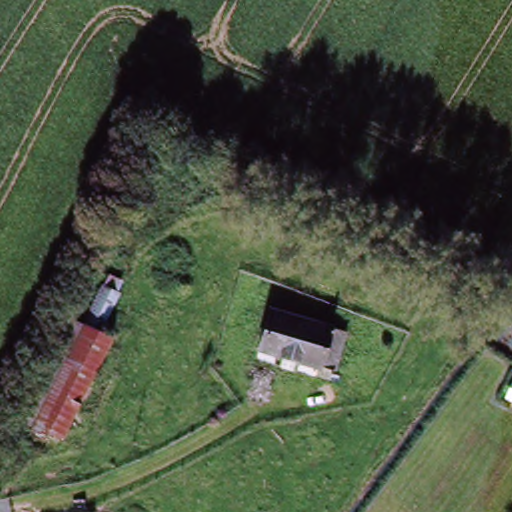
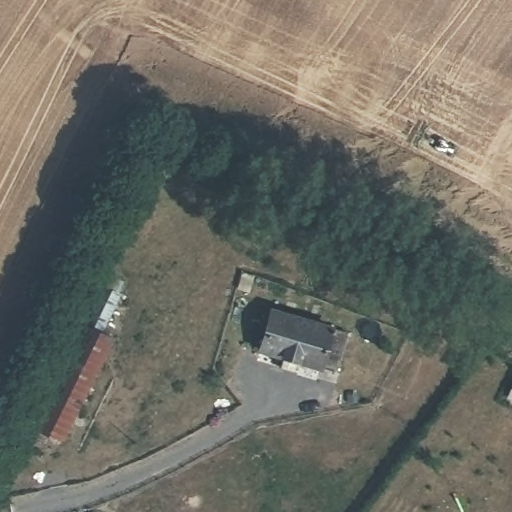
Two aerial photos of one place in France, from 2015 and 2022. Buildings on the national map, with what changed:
unchanged [(99,280),(116,289),(98,329),(114,337),(60,447),(28,431),(35,415),(80,320),(99,280)]
unchanged [(9,402),(55,306),(80,320),(35,415),(9,402)]
unchanged [(247,348),(259,311),(335,335),(323,372),(247,348)]
unchanged [(512,383),(512,397),(507,396),(512,383)]

